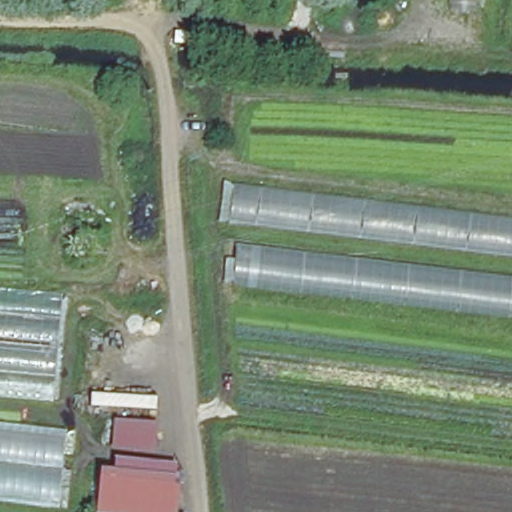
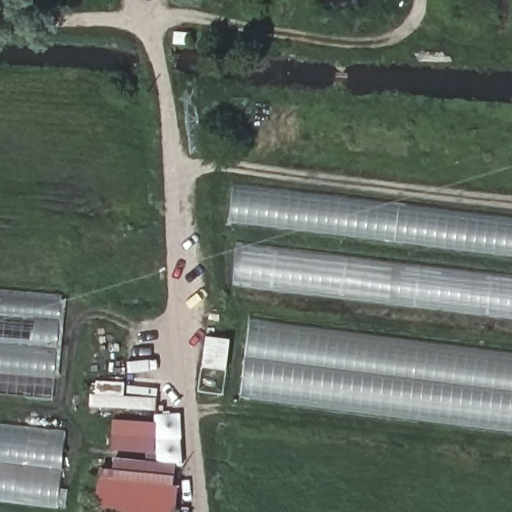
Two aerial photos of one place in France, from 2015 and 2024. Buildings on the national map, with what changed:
unchanged [(225,180),(512,217),(512,259),(219,222),(225,180)]
unchanged [(77,261),(77,235),(103,234),(103,260),(77,261)]
unchanged [(234,241),(512,277),(512,317),(228,282),(234,241)]
unchanged [(68,297),(60,395),(0,390),(0,292),(68,297)]
new [(250,318),(512,352),(512,433),(239,398),(250,318)]
new [(90,406),(90,381),(124,382),(124,395),(156,397),(156,409),(90,406)]
new [(156,452),(156,460),(176,463),(175,470),(114,465),(112,465),(114,456),(145,460),(146,451),(111,449),(113,419),(156,422),(156,452)]
unchanged [(61,471),(71,472),(69,490),(59,489),(57,508),(0,502),(0,423),(64,430),(61,471)]
unchanged [(101,464),(179,471),(176,512),(122,512),(95,507),(101,464)]

